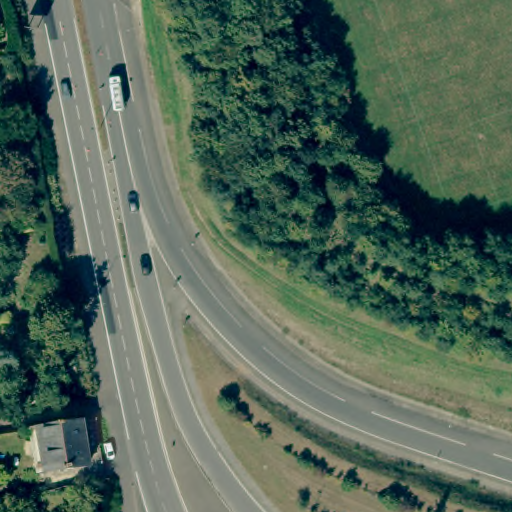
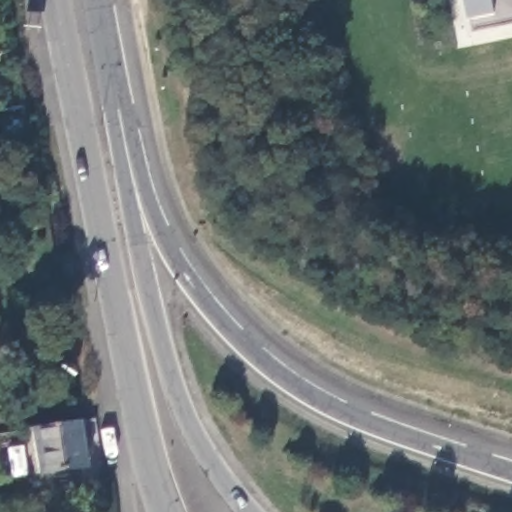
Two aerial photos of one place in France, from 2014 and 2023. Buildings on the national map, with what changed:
new [(462,22),(489,16),(483,0),(512,0),(512,28),(466,38),(462,22)]
unchanged [(92,445),(84,446),(87,468),(41,474),(34,426),(88,418),(92,445)]

